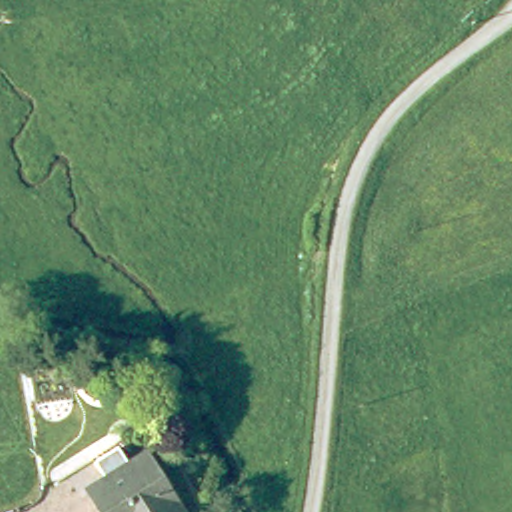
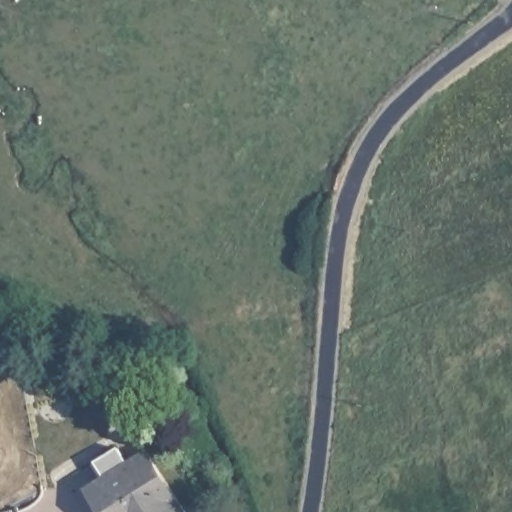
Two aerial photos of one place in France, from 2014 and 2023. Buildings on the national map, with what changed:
unchanged [(150,455),(186,512),(109,512),(95,490),(150,455)]

